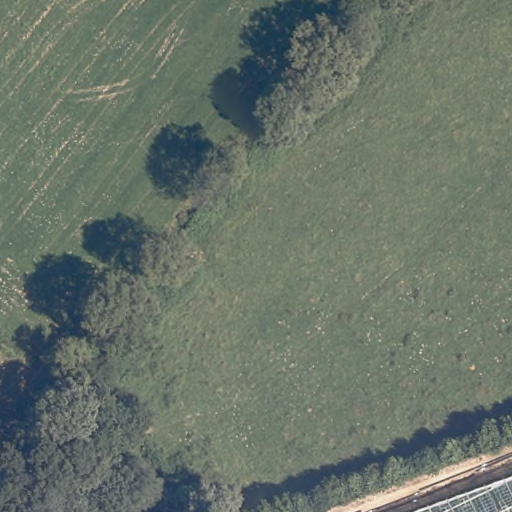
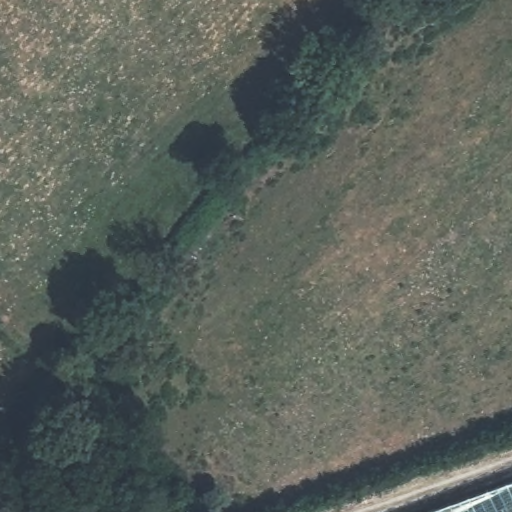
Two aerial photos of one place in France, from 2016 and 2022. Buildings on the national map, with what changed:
unchanged [(512,512),(432,512),(512,483),(512,512)]

